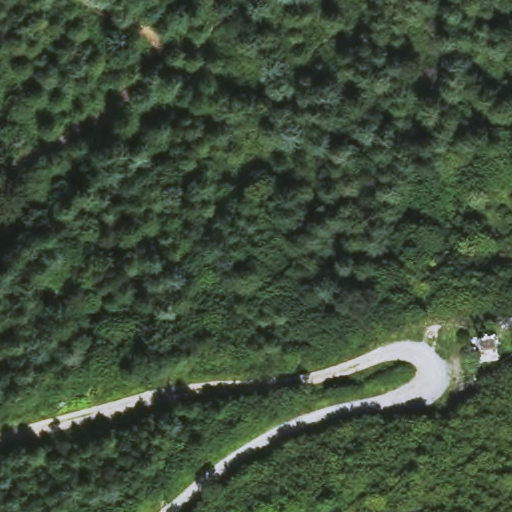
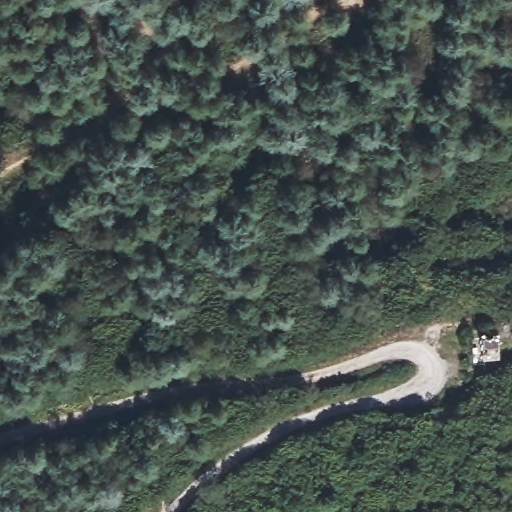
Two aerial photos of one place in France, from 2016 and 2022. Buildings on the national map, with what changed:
unchanged [(502,327),(503,361),(472,362),(472,327),(502,327)]

